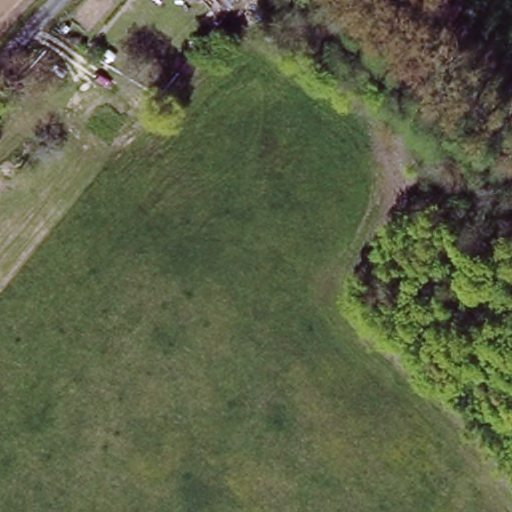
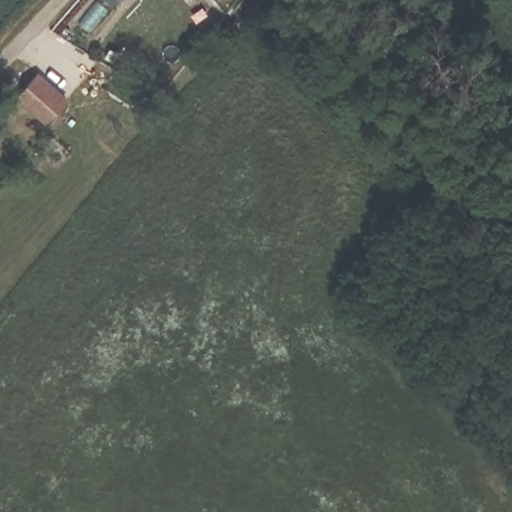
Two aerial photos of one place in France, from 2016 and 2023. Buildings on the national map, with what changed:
new [(35,73),(64,100),(44,122),(15,96),(35,73)]

